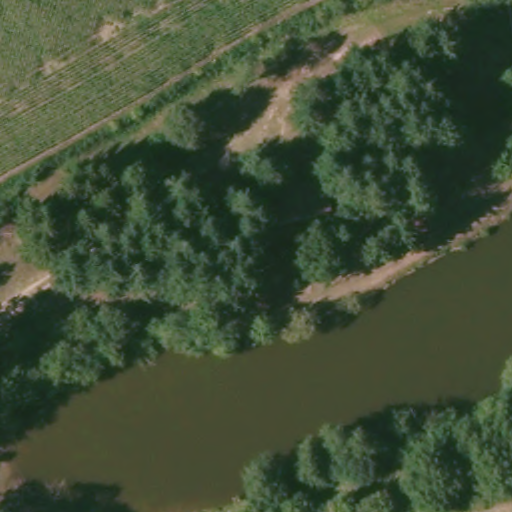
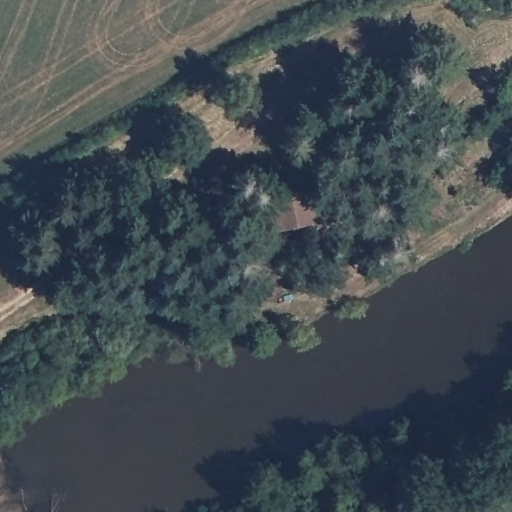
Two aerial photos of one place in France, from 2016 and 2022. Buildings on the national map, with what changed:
unchanged [(265,234),(256,200),(323,182),(328,216),(265,234)]

